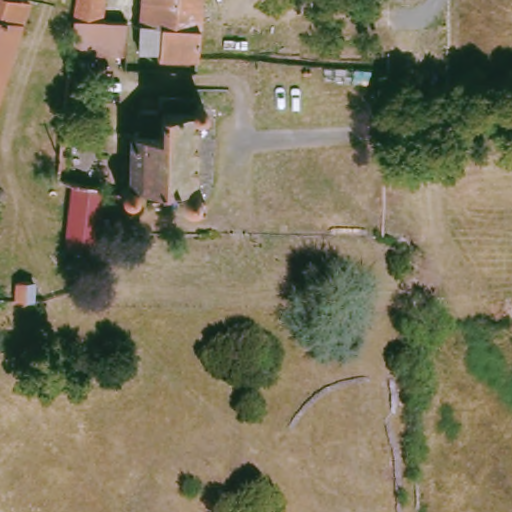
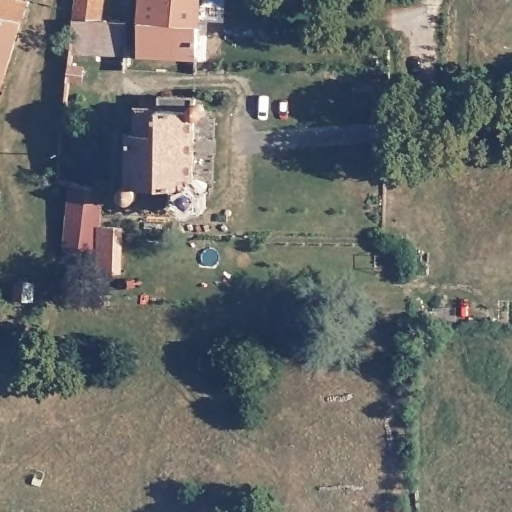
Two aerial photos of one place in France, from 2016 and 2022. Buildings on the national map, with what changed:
unchanged [(0,87),(0,0),(27,0),(0,87)]
unchanged [(73,19),(76,0),(102,0),(100,20),(73,19)]
unchanged [(158,55),(158,52),(138,51),(140,22),(142,0),(200,0),(197,57),(158,55)]
unchanged [(100,20),(126,21),(125,53),(70,52),(73,19),(100,20)]
unchanged [(84,68),(82,81),(70,80),(72,67),(84,68)]
unchanged [(135,143),(137,143),(137,125),(144,125),(145,119),(164,119),(165,107),(201,108),(201,114),(200,128),(198,196),(208,209),(187,198),(148,198),(138,212),(134,194),(135,143)]
unchanged [(73,250),(65,250),(73,182),(104,188),(100,233),(98,253),(97,262),(95,266),(71,264),(73,250)]
unchanged [(35,285),(34,300),(14,300),(15,284),(35,285)]

